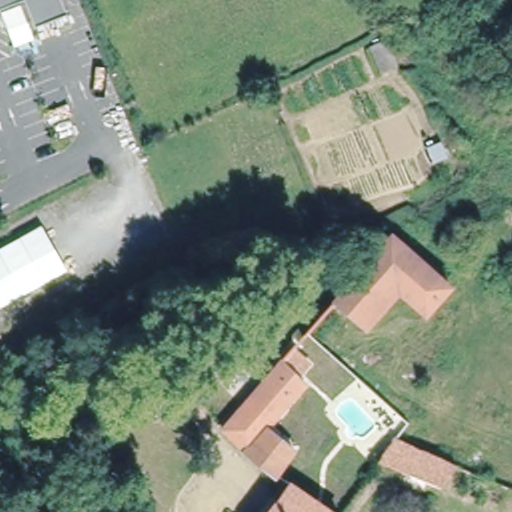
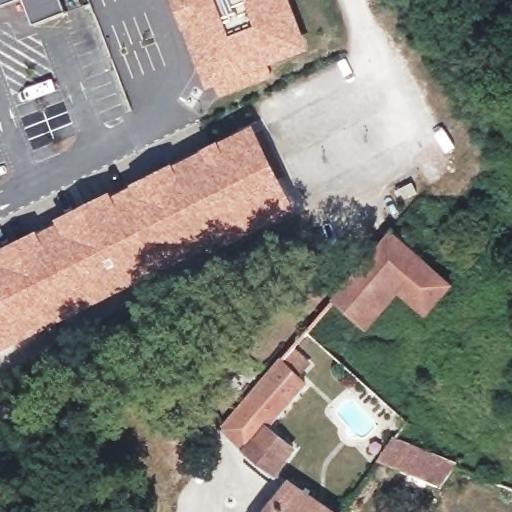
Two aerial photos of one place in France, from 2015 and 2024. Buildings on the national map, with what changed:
unchanged [(0,0),(15,0),(0,6),(0,0)]
unchanged [(33,24),(24,0),(62,0),(66,11),(33,24)]
new [(268,65),(274,78),(222,98),(215,85),(207,88),(173,0),(292,0),(311,49),(268,65)]
new [(0,353),(0,251),(255,123),(296,211),(0,353)]
demolished [(235,266),(227,237),(260,227),(268,257),(235,266)]
unchanged [(451,285),(426,313),(399,290),(366,329),(333,301),(380,248),(393,233),(451,285)]
unchanged [(303,384),(267,427),(293,447),(275,473),(224,427),(279,363),(303,384)]
unchanged [(438,483),(380,460),(392,441),(452,465),(438,483)]
unchanged [(291,482),(332,512),(269,512),(291,482)]

